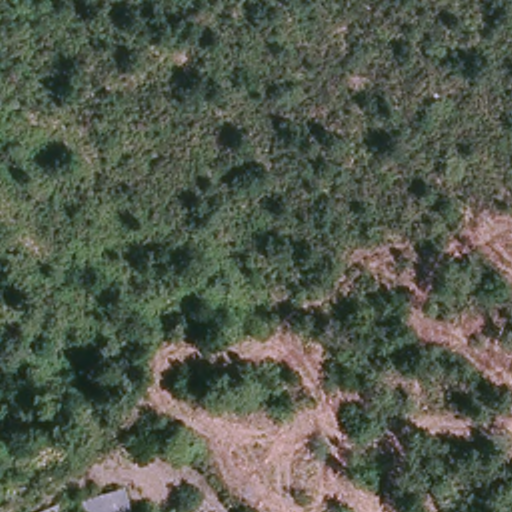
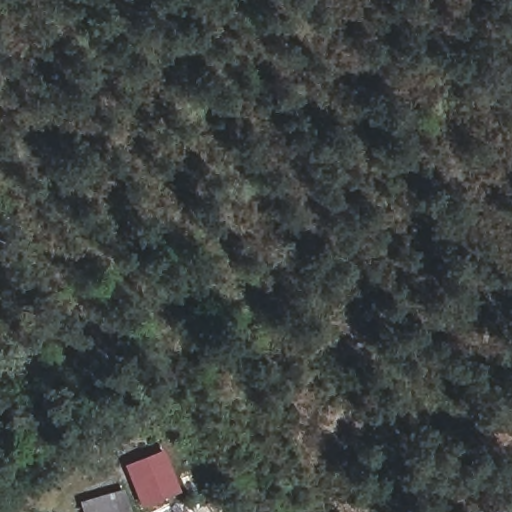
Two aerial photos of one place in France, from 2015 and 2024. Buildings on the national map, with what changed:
new [(178,492),(139,507),(124,465),(161,450),(178,492)]
unchanged [(125,489),(131,512),(84,512),(80,502),(125,489)]

